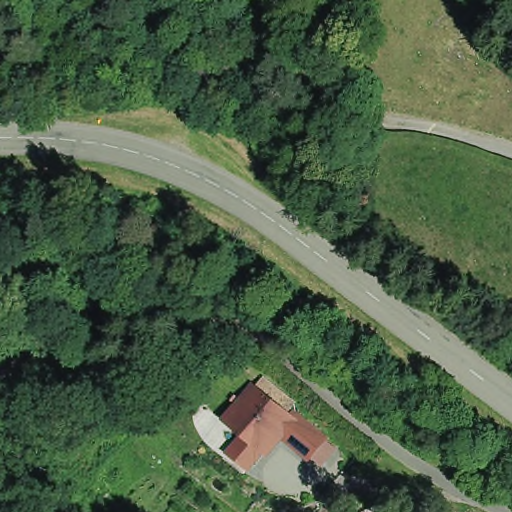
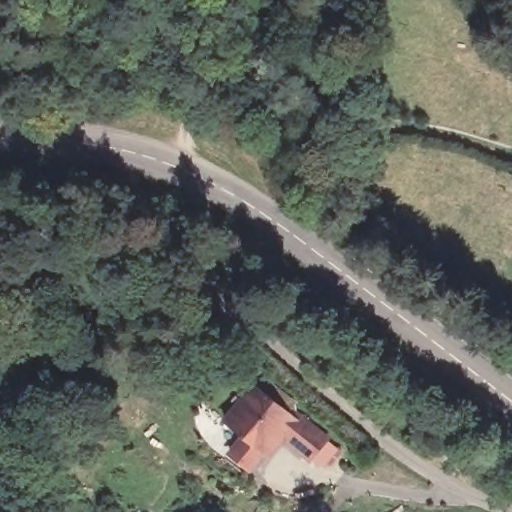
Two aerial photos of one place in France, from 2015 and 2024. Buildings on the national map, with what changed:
unchanged [(235,442),(248,429),(230,412),(265,388),(299,417),(267,447),(255,459),(235,442)]

